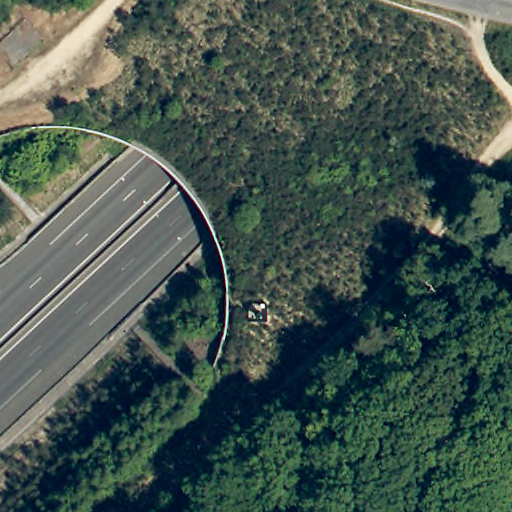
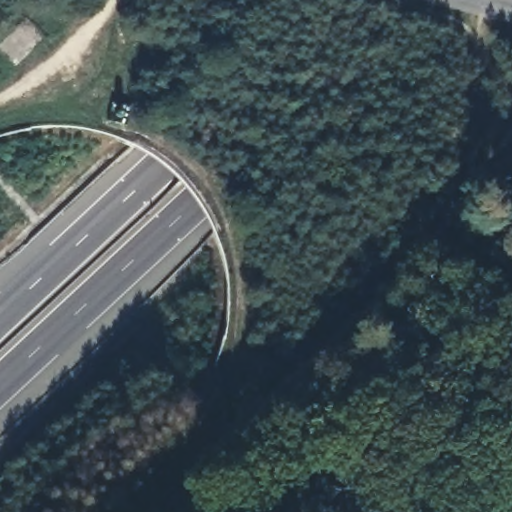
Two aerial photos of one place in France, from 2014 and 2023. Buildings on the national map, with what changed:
[]

